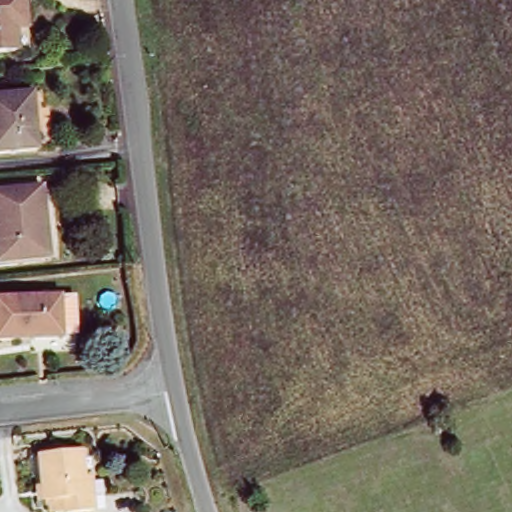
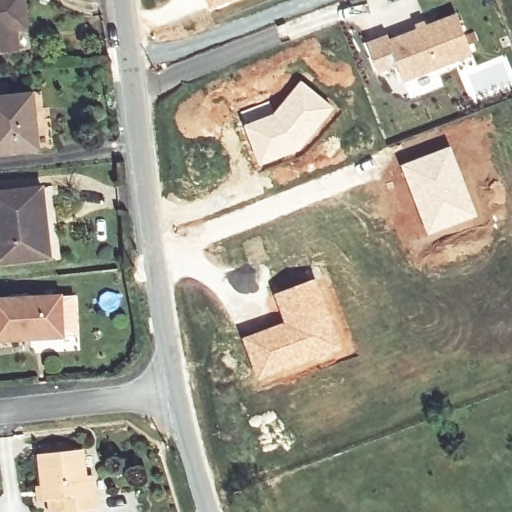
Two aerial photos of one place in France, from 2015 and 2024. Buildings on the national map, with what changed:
unchanged [(0,0),(35,0),(36,19),(26,20),(28,46),(0,48),(0,0)]
new [(210,0),(226,0),(212,6),(210,0)]
new [(387,36),(389,41),(456,14),(471,52),(402,78),(396,62),(378,69),(367,43),(387,36)]
new [(270,113),(274,110),(301,79),(335,108),(299,150),(259,166),(243,123),(270,113)]
unchanged [(16,94),(43,91),(50,90),(56,147),(49,148),(0,153),(0,85),(15,84),(16,94)]
new [(450,144),(478,216),(427,236),(399,164),(450,144)]
unchanged [(53,255),(6,260),(0,201),(0,187),(52,181),(56,217),(60,251),(52,251),(53,255)]
new [(282,321),(271,293),(315,277),(343,349),(257,381),(240,337),(282,321)]
unchanged [(0,322),(0,297),(66,294),(68,335),(1,339),(0,322)]
unchanged [(52,485),(49,453),(92,448),(96,475),(102,475),(104,493),(106,509),(77,511),(77,509),(64,510),(62,498),(54,499),(47,499),(46,485),(52,485)]

